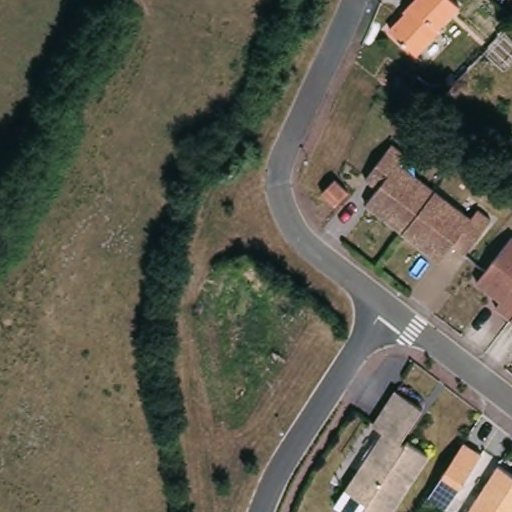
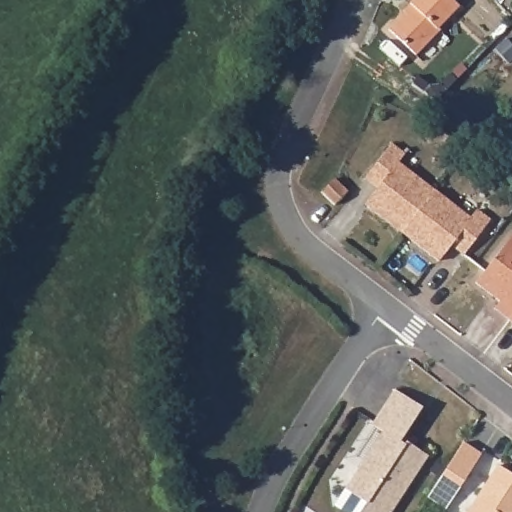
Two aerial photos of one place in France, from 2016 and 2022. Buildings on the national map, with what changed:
unchanged [(441,24),(420,49),(394,29),(413,8),(409,3),(413,0),(457,0),(439,19),(441,24)]
unchanged [(397,108),(404,102),(417,108),(424,108),(436,97),(444,103),(424,125),(397,108)]
unchanged [(405,155),(400,165),(470,220),(476,212),(492,221),(464,258),(452,249),(439,263),(366,205),(379,188),(368,182),(392,149),(405,155)]
unchanged [(350,194),(336,208),(322,194),(336,180),(350,194)]
unchanged [(512,323),(494,309),(500,300),(476,280),(510,240),(512,241),(512,323)]
unchanged [(422,409),(402,442),(427,461),(394,512),(365,512),(368,506),(349,492),(384,437),(370,428),(395,393),(422,409)]
unchanged [(481,457),(449,512),(446,512),(427,501),(462,444),(481,457)]
unchanged [(512,512),(469,512),(496,469),(512,479),(512,512)]

